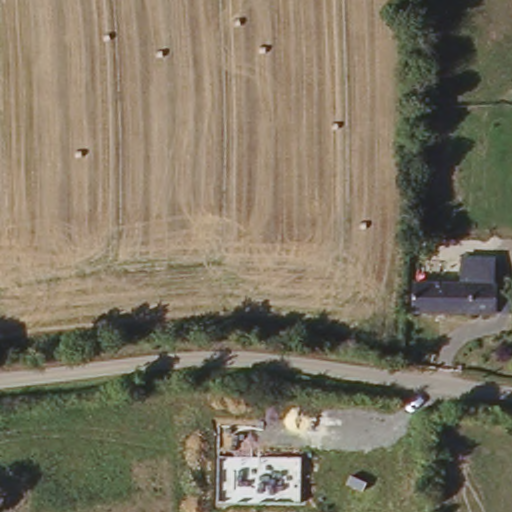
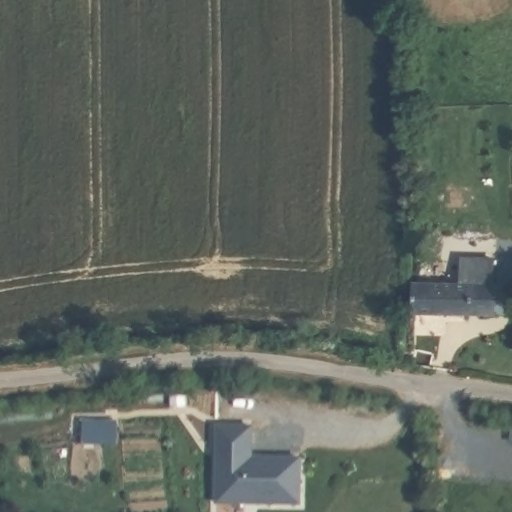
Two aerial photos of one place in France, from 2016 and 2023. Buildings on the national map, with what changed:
unchanged [(413,282),(460,282),(462,258),(496,261),(495,281),(510,281),(508,319),(413,317),(413,282)]
new [(255,424),(254,454),(304,456),(302,506),(217,505),(218,423),(255,424)]

